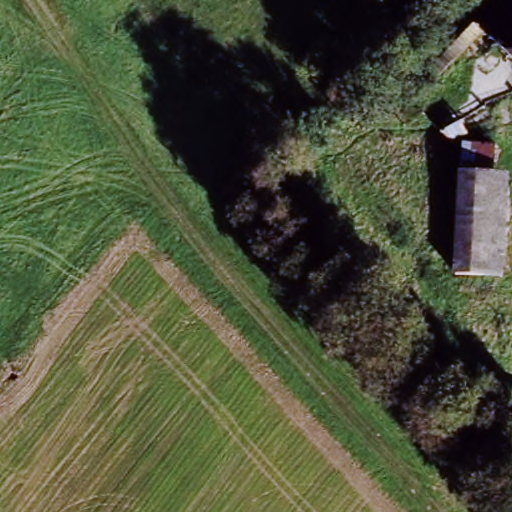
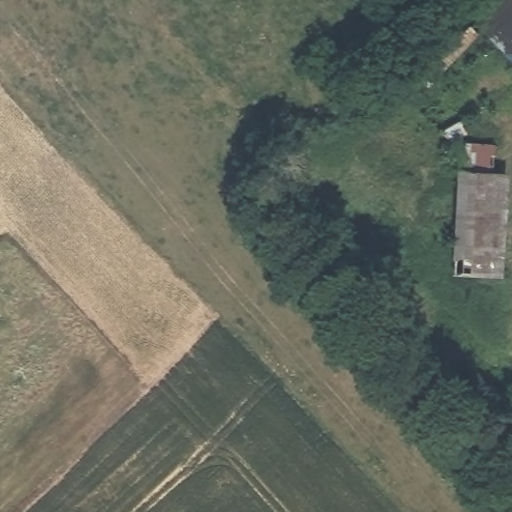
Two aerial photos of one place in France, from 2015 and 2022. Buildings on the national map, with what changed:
unchanged [(502,0),(512,0),(512,56),(478,24),(502,0)]
unchanged [(483,167),(500,175),(502,273),(460,273),(458,152),(477,149),(483,167)]
unchanged [(512,440),(504,431),(512,425),(512,440)]

